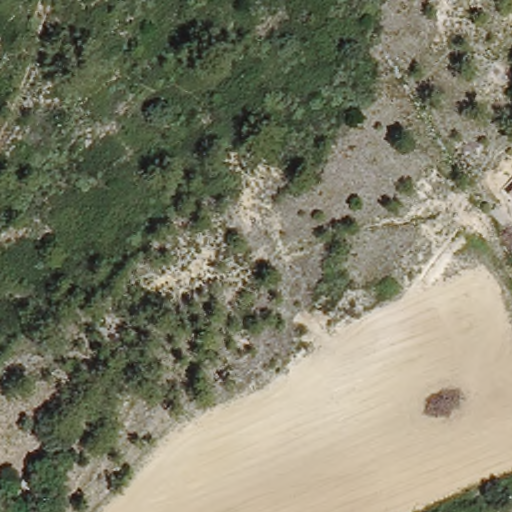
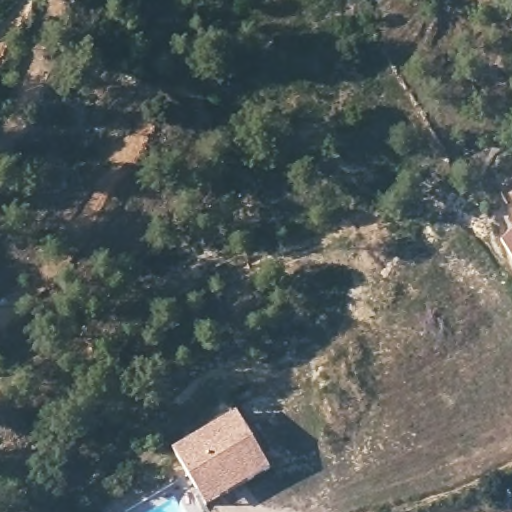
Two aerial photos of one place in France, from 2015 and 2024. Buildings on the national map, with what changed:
unchanged [(512,191),(512,206),(505,198),(512,191)]
new [(202,493),(176,451),(241,412),(274,468),(253,481),(210,507),(202,493)]

